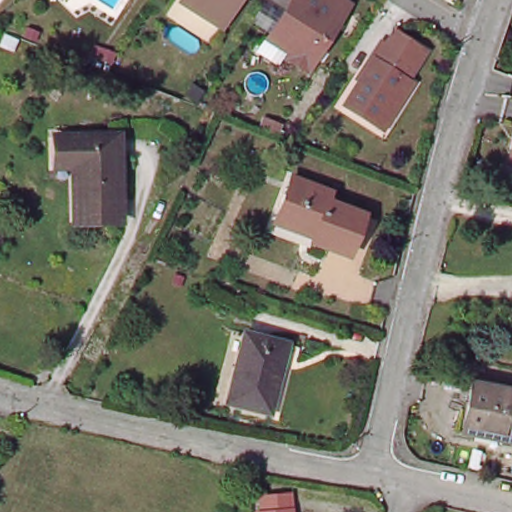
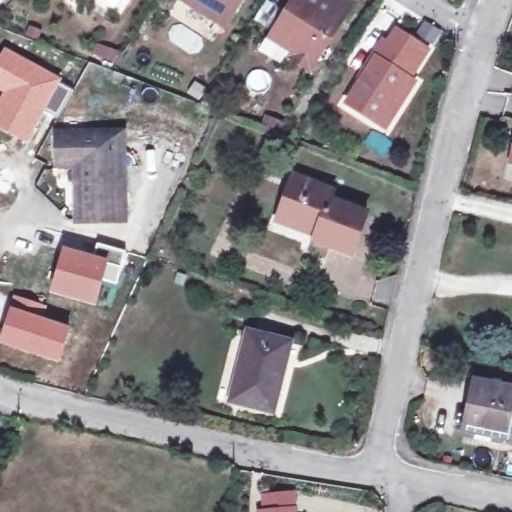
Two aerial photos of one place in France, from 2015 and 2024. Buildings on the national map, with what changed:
unchanged [(241,0),(224,27),(192,6),(184,1),(184,0),(241,0)]
unchanged [(265,2),(286,14),(292,17),(296,11),(290,7),(294,1),(292,0),(345,0),(348,2),(345,6),(307,67),(291,57),(293,53),(283,47),(270,39),(274,34),(253,21),(265,2)]
new [(440,34),(432,46),(417,36),(425,24),(440,34)]
unchanged [(371,121),(345,104),(373,59),(371,57),(381,42),(385,45),(395,31),(424,51),(406,79),(411,82),(390,115),(381,128),(371,121)]
new [(61,79),(60,83),(72,90),(56,117),(45,111),(27,144),(0,129),(0,94),(1,92),(0,91),(0,53),(3,47),(61,79)]
unchanged [(84,222),(82,169),(60,169),(60,136),(122,135),(123,156),(125,197),(125,221),(84,222)]
unchanged [(510,160),(512,151),(512,160),(510,160)]
unchanged [(349,251),(311,236),(315,228),(276,212),(293,174),(328,190),(326,197),(363,212),(349,251)]
new [(62,246),(93,255),(96,242),(127,251),(117,286),(102,282),(96,306),(50,292),(62,246)]
new [(47,305),(44,318),(70,326),(60,362),(0,344),(0,340),(12,295),(47,305)]
unchanged [(270,410),(228,397),(250,333),(291,346),(270,410)]
unchanged [(512,382),(512,447),(465,437),(479,376),(512,382)]
unchanged [(270,498),(297,496),(299,512),(271,512),(270,498)]

